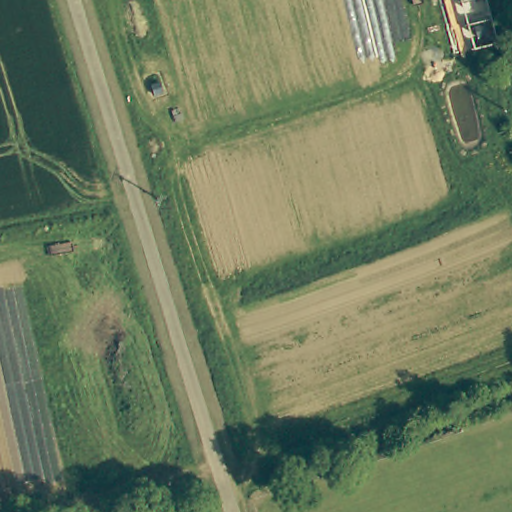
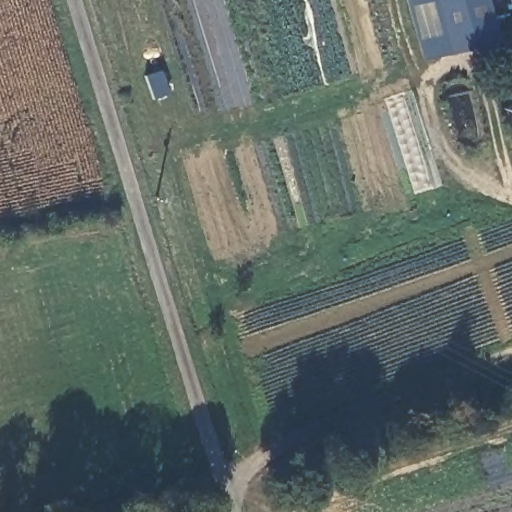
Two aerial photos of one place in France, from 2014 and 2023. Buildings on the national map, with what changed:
new [(423,64),(410,0),(488,0),(499,41),(423,64)]

